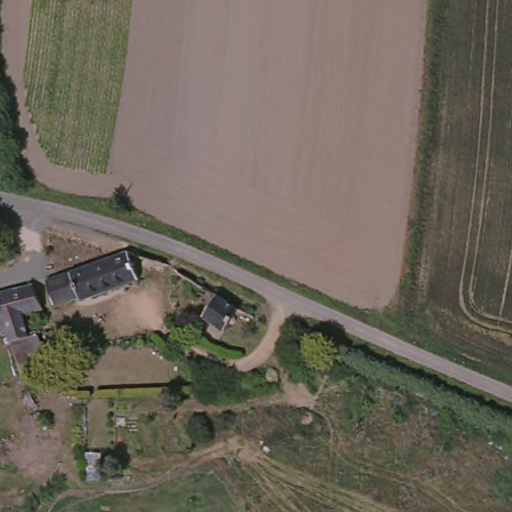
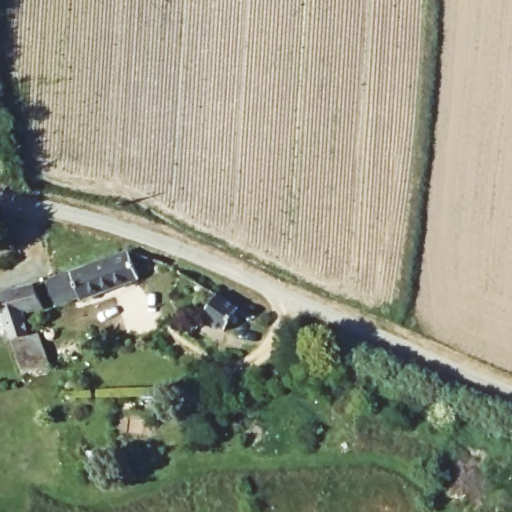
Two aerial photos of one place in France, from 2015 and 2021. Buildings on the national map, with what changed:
unchanged [(128,257),(136,282),(75,302),(74,299),(54,306),(46,284),(128,257)]
unchanged [(35,313),(25,315),(43,377),(16,383),(2,331),(0,331),(0,292),(29,285),(35,313)]
unchanged [(238,309),(226,328),(203,314),(216,297),(238,309)]

